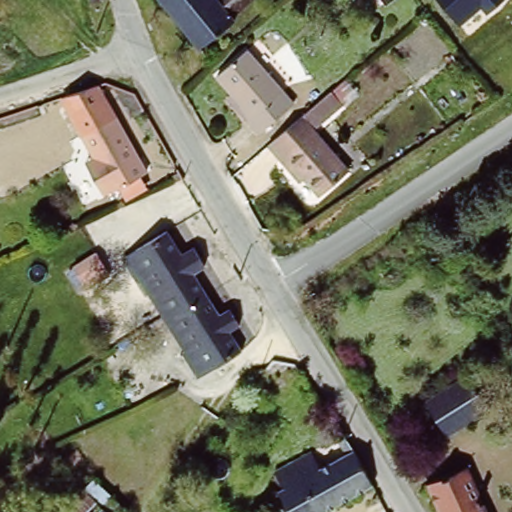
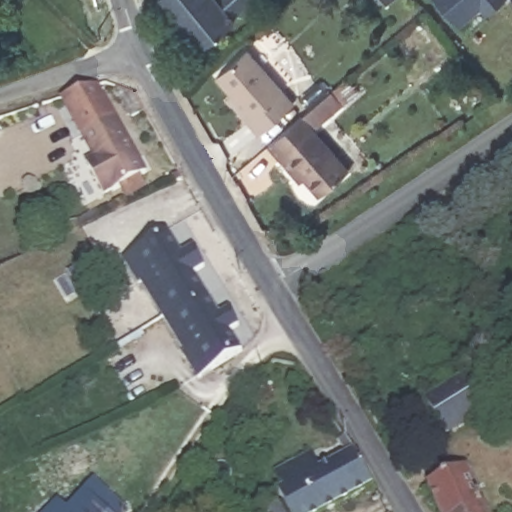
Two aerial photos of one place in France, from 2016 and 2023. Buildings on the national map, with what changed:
unchanged [(162,0),(254,0),(233,17),(236,21),(201,49),(162,0)]
unchanged [(487,14),(482,7),(461,26),(439,0),(502,0),(487,14)]
unchanged [(299,106),(264,134),(252,120),(256,116),(231,85),(221,74),(251,47),(299,106)]
unchanged [(94,160),(65,99),(100,87),(104,89),(146,179),(101,199),(88,170),(85,164),(94,160)]
unchanged [(322,195),(307,176),(301,181),(269,146),(305,115),(326,96),(339,110),(316,130),(351,171),(322,195)]
unchanged [(185,254),(195,247),(207,266),(196,273),(207,291),(221,314),(231,308),(241,326),(231,332),(242,351),(204,375),(198,378),(183,352),(163,318),(143,283),(128,257),(140,250),(171,230),(185,254)]
unchanged [(86,285),(83,278),(76,263),(100,252),(108,267),(111,273),(86,285)]
unchanged [(491,407),(496,415),(483,423),(478,415),(446,435),(426,400),(469,373),(491,407)]
unchanged [(268,470),(303,451),(312,469),(347,450),(342,441),(348,438),(353,447),(374,486),(326,512),(289,512),(276,488),(268,470)]
unchanged [(473,458),(497,512),(447,512),(432,477),(473,458)]
unchanged [(64,505),(83,485),(94,474),(129,505),(124,512),(42,512),(56,497),(64,505)]

